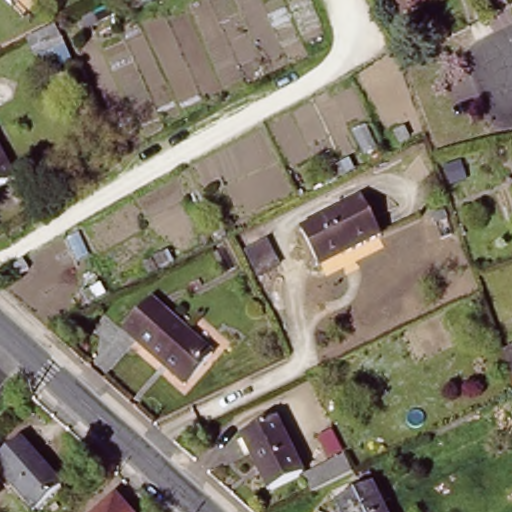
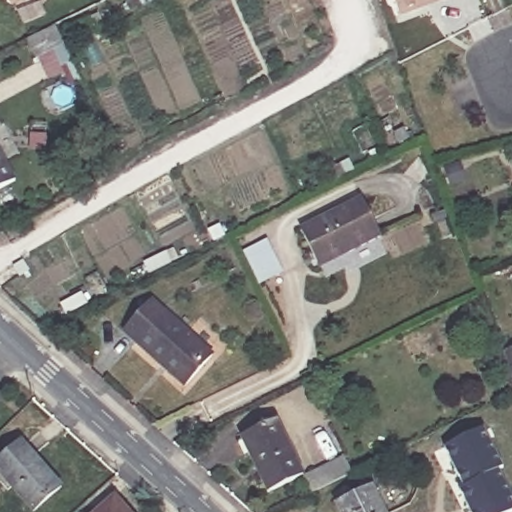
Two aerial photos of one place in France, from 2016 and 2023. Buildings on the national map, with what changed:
unchanged [(7,0),(9,0),(8,1),(7,0)]
unchanged [(393,0),(458,0),(459,2),(403,23),(393,0)]
unchanged [(16,179),(0,186),(0,148),(16,179)]
unchanged [(320,268),(300,228),(363,199),(380,237),(320,268)]
unchanged [(281,269),(254,283),(242,255),(269,242),(281,269)]
unchanged [(214,355),(188,388),(124,335),(152,302),(214,355)]
unchanged [(512,350),(512,370),(506,352),(512,350)]
unchanged [(268,491),(242,439),(279,422),(304,473),(268,491)]
new [(466,490),(447,448),(486,431),(504,472),(466,490)]
unchanged [(21,446),(62,491),(37,512),(31,512),(0,476),(0,464),(21,446)]
unchanged [(308,479),(331,468),(348,460),(356,476),(316,496),(308,479)]
new [(512,489),(512,512),(474,512),(466,490),(504,472),(512,489)]
unchanged [(379,484),(375,487),(386,512),(342,512),(339,505),(367,490),(362,481),(375,475),(379,484)]
unchanged [(115,500),(125,512),(99,512),(115,500)]

